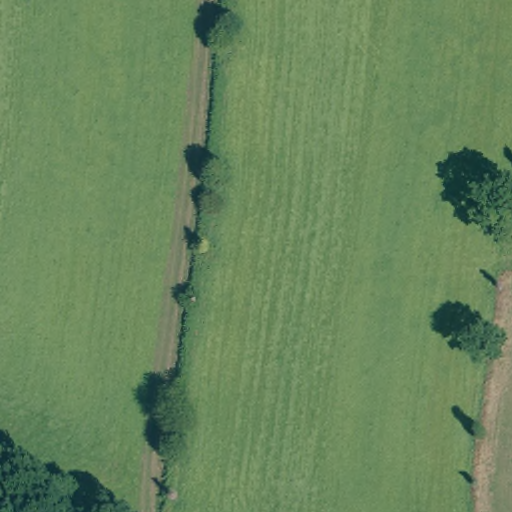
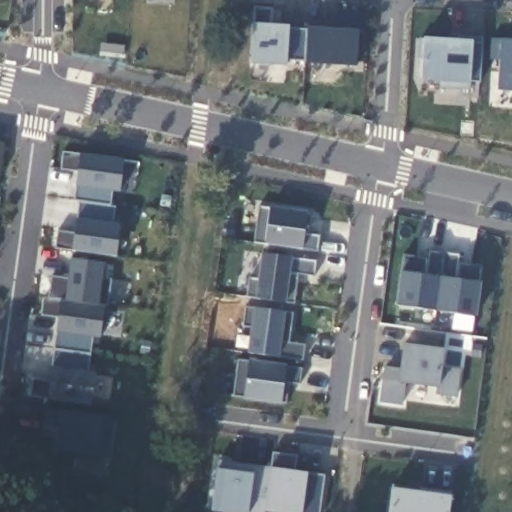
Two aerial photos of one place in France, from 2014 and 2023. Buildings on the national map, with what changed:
new [(273,8),(272,24),(336,29),(337,11),(360,13),(360,30),(357,29),(357,66),(286,62),(286,66),(251,64),(252,24),(255,7),(273,8)]
new [(470,81),(470,89),(440,87),(440,79),(421,78),(423,58),(419,58),(420,38),(449,40),(449,45),(458,45),(458,35),(483,37),(480,82),(470,81)]
new [(499,59),(491,58),(492,37),(512,39),(512,90),(498,89),(499,59)]
new [(63,151),(124,159),(120,191),(113,190),(111,205),(74,200),(78,171),(61,169),(63,151)]
new [(82,233),(75,232),(77,219),(79,201),(116,206),(113,223),(121,224),(116,256),(55,248),(57,230),(82,233)]
new [(254,242),(259,205),(313,212),(310,233),(321,234),(318,251),(254,242)]
new [(428,259),(430,250),(460,255),(459,263),(482,266),(480,283),(476,315),(396,304),(401,271),(404,256),(428,259)]
new [(249,276),(259,278),(263,252),(317,260),(315,276),(299,274),(295,303),(247,297),(249,276)]
new [(49,380),(52,366),(57,332),(57,318),(42,315),(45,299),(48,300),(52,276),(68,279),(71,258),(105,262),(108,262),(106,279),(111,280),(107,306),(103,305),(99,337),(93,337),(89,371),(95,372),(90,404),(46,398),(29,395),(32,379),(49,380)]
new [(253,327),(243,326),(245,306),(294,312),(290,341),(306,344),(304,360),(249,352),(253,327)]
new [(384,376),(399,377),(400,367),(403,343),(445,348),(442,367),(461,369),(457,396),(436,394),(436,387),(406,383),(402,404),(381,402),(384,376)]
new [(238,359),(303,367),(300,384),(290,382),(287,403),(233,396),(238,359)]
new [(110,456),(98,455),(97,461),(75,458),(76,452),(56,449),(59,426),(44,424),(46,408),(116,417),(110,456)]
new [(269,512),(266,511),(266,512),(217,512),(212,511),(218,469),(219,460),(271,467),(273,453),(296,457),(296,471),(307,473),(323,476),(319,512),(269,512)]
new [(419,492),(420,487),(452,491),(450,512),(389,512),(392,488),(419,492)]

